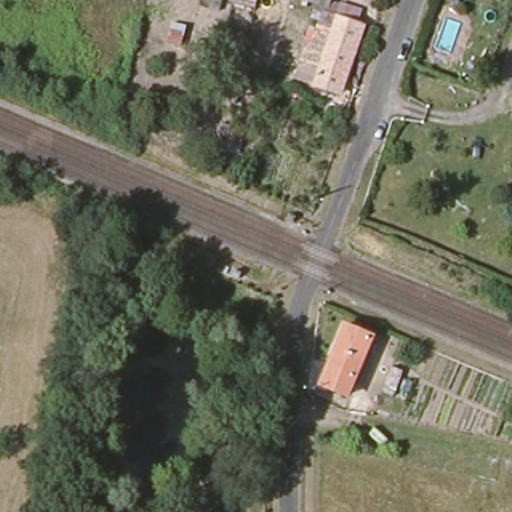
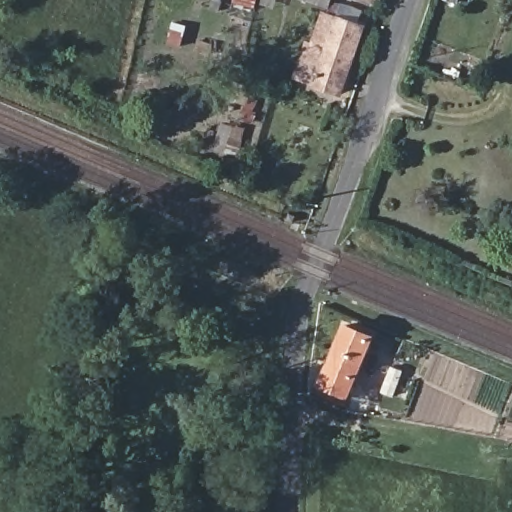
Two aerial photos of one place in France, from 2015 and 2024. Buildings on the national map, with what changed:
unchanged [(290,0),(329,0),(326,12),(290,0)]
unchanged [(351,0),(374,0),(372,7),(351,0)]
unchanged [(290,84),(302,47),(311,50),(321,19),(358,32),(337,99),(290,84)]
unchanged [(347,322),(375,336),(345,396),(317,382),(340,336),(347,322)]

